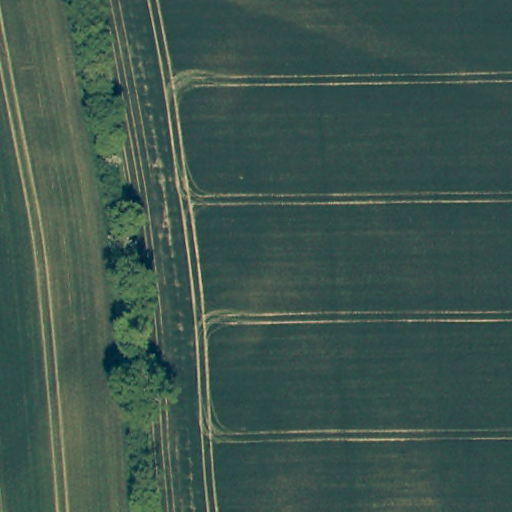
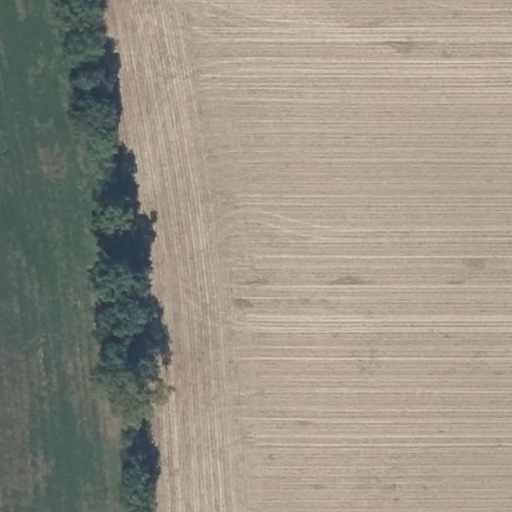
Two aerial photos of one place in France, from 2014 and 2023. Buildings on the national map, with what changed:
[]

